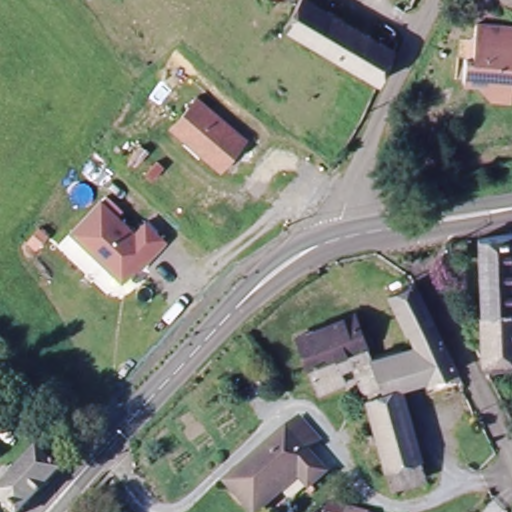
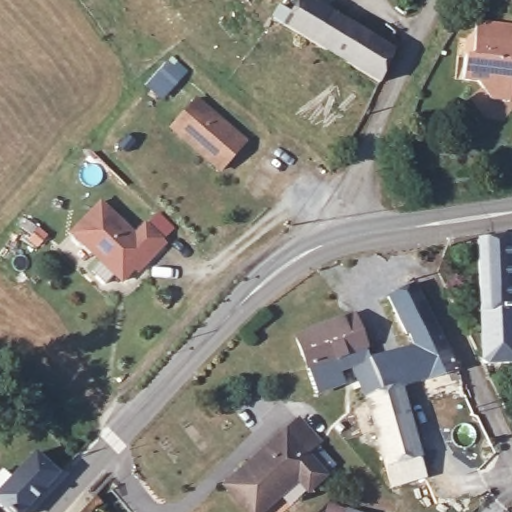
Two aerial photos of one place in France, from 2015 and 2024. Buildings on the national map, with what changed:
unchanged [(321,0),(394,42),(378,73),(288,22),(286,21),(297,0),(321,0)]
unchanged [(511,90),(510,95),(495,94),(481,75),(463,72),(465,54),(467,33),(480,26),(480,20),(512,23),(512,91),(511,90)]
unchanged [(220,119),(243,138),(218,167),(197,149),(169,126),(193,96),(220,119)]
unchanged [(131,230),(137,236),(148,225),(168,244),(152,261),(146,268),(142,265),(125,283),(74,235),(103,204),(131,230)]
unchanged [(487,364),(481,246),(512,240),(512,364),(487,364)]
unchanged [(440,326),(418,336),(412,337),(397,300),(419,291),(440,326)]
unchanged [(300,343),(357,320),(371,352),(356,358),(357,366),(339,374),(344,388),(340,390),(321,398),(311,370),(300,343)]
unchanged [(422,349),(418,336),(440,326),(466,377),(456,381),(453,376),(405,394),(433,481),(415,487),(397,492),(371,404),(365,381),(381,376),(377,363),(397,357),(422,349)]
unchanged [(507,413),(512,410),(512,424),(507,413)]
unchanged [(332,444),(315,458),(333,484),(310,501),(297,488),(266,512),(240,512),(220,486),(302,417),(332,444)]
unchanged [(0,507),(0,474),(1,473),(10,480),(32,456),(58,474),(21,512),(7,512),(0,507)]
unchanged [(351,512),(347,512),(347,511),(351,512)]

